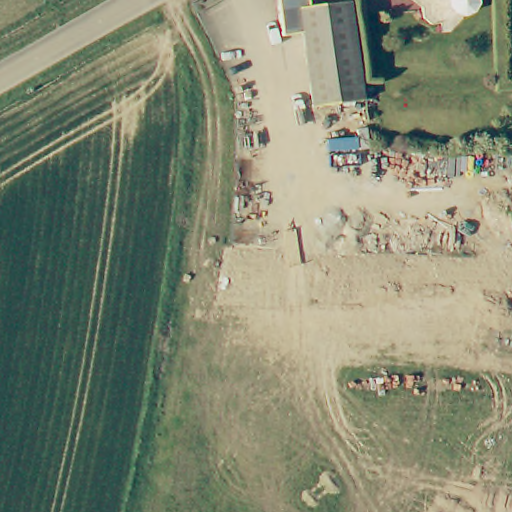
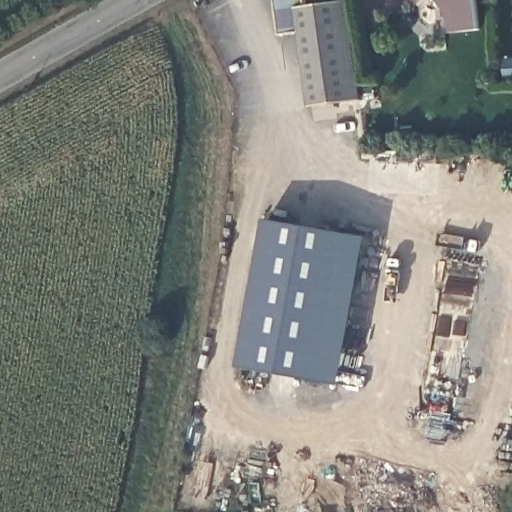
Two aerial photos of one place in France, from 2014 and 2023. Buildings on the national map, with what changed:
unchanged [(355,73),(357,99),(335,102),(308,105),(305,78),(299,31),(278,34),(275,0),(305,0),(306,5),(342,0),(346,0),(355,73)]
unchanged [(475,11),(463,12),(431,14),(430,5),(425,0),(484,0),(485,0),(475,11)]
new [(242,366),(268,220),(351,235),(370,238),(342,385),(325,381),(242,366)]

